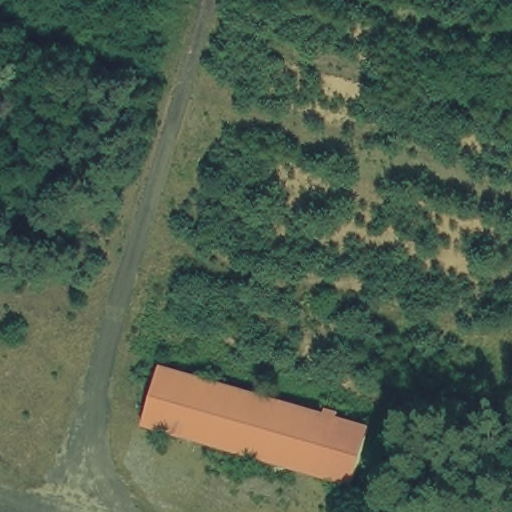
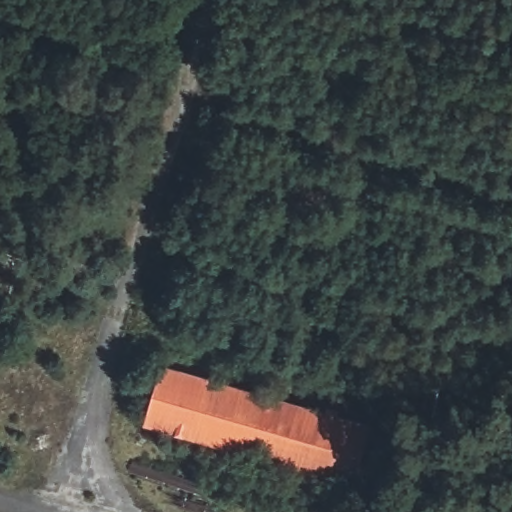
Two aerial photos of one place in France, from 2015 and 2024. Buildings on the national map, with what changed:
unchanged [(166,365),(374,423),(356,487),(147,428),(166,365)]

